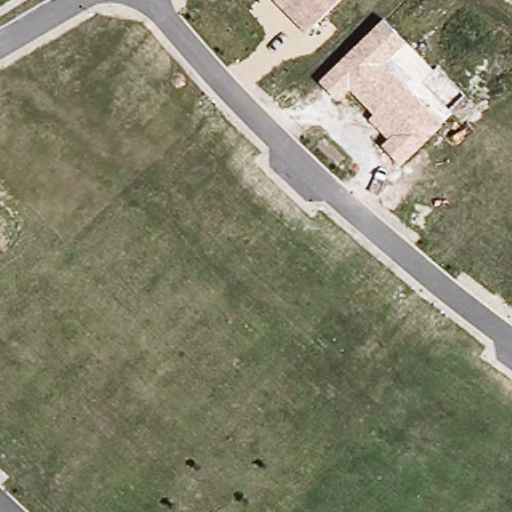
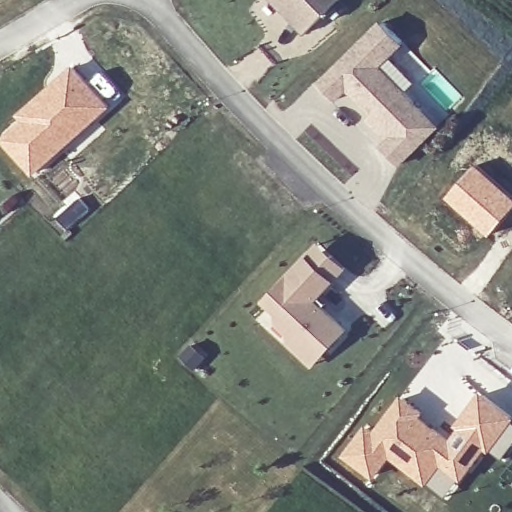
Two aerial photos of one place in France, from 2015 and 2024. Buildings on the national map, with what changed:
unchanged [(302,31),(282,9),(273,0),(334,0),(302,31)]
unchanged [(407,42),(384,66),(442,125),(403,166),(382,145),(387,139),(371,122),(376,115),(351,91),(340,102),(321,82),(385,20),(407,42)]
new [(20,117),(17,113),(75,63),(92,80),(102,70),(121,91),(111,101),(114,104),(34,174),(0,136),(0,135),(20,117)]
new [(512,193),(512,211),(491,235),(447,196),(476,163),(512,193)]
new [(82,195),(94,207),(67,230),(56,216),(82,195)]
new [(278,320),(279,310),(267,297),(309,252),(321,240),(347,263),(335,277),(317,297),(347,327),(328,347),(314,362),(290,340),(291,330),(278,320)]
new [(512,411),(512,448),(504,458),(492,451),(488,448),(460,426),(456,422),(482,388),(512,411)]
new [(367,422),(374,427),(402,393),(427,412),(424,416),(451,437),(460,426),(488,448),(446,497),(391,458),(373,480),(341,456),(367,422)]

